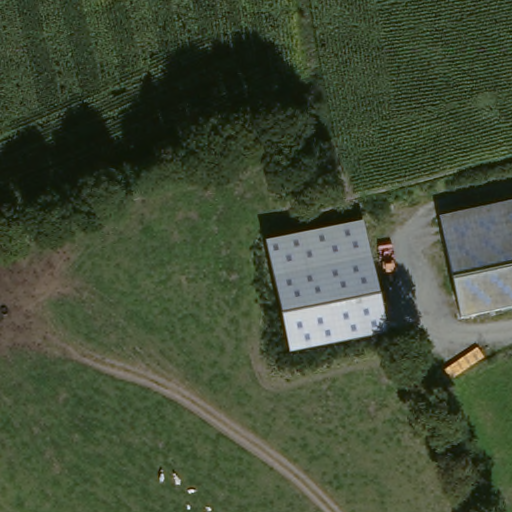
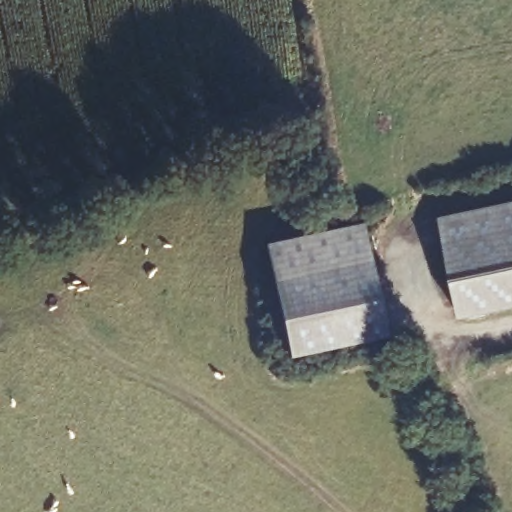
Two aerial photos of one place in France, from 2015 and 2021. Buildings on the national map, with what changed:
unchanged [(512,200),(512,304),(461,314),(440,215),(512,200)]
unchanged [(389,335),(289,356),(265,241),(364,220),(389,335)]

